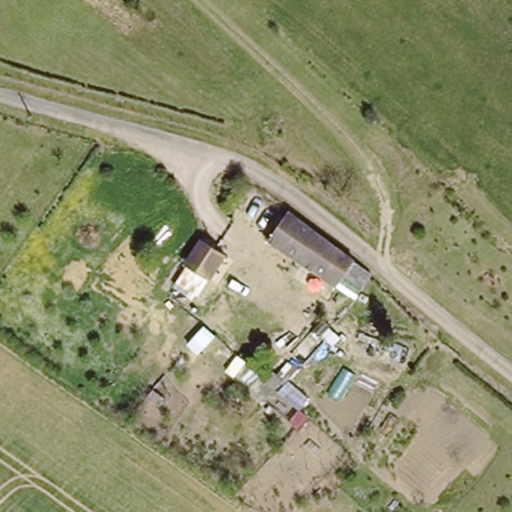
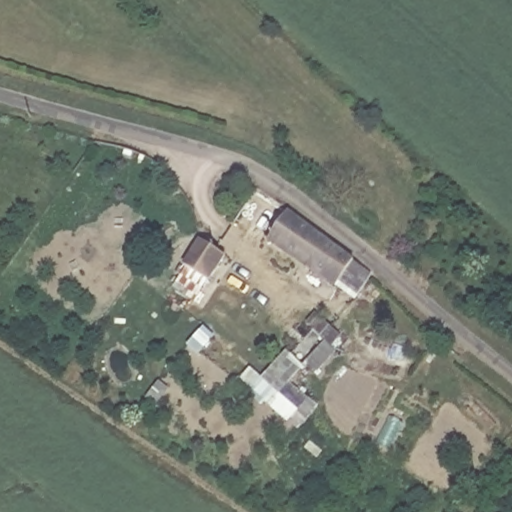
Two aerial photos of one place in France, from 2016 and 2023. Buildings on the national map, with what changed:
unchanged [(367,272),(348,296),(284,246),(304,222),(367,272)]
unchanged [(226,260),(208,284),(187,267),(206,244),(226,260)]

